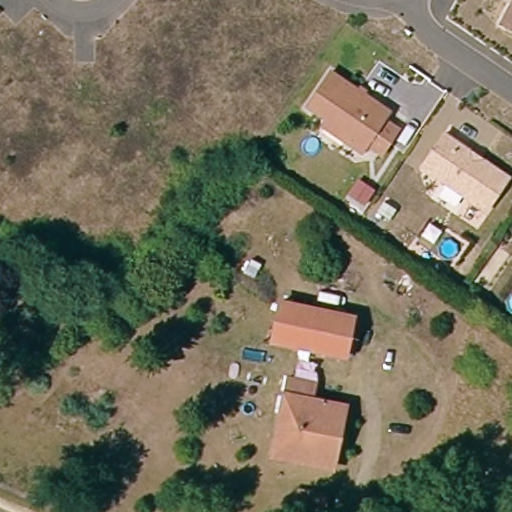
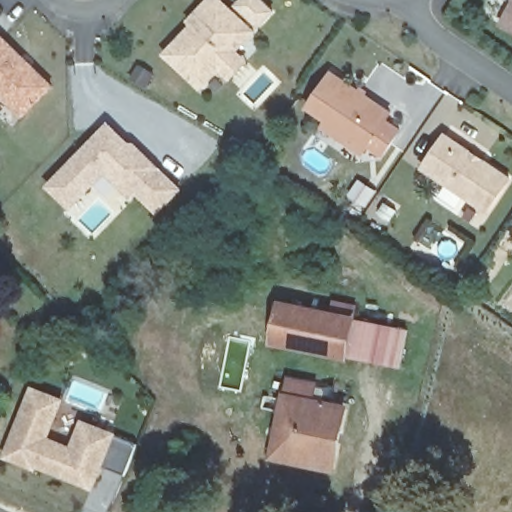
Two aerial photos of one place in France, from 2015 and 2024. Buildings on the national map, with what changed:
new [(254,0),(270,14),(256,29),(237,49),(249,58),(230,79),(219,69),(201,87),(161,51),(190,22),(185,18),(204,0),(226,0),(234,8),(242,0),(254,0)]
unchanged [(499,22),(510,0),(512,0),(512,29),(499,22)]
new [(22,114),(0,95),(0,29),(55,83),(22,114)]
unchanged [(381,152),(367,143),(362,150),(347,140),(322,124),(326,118),(306,105),(329,70),(388,110),(383,118),(398,127),(381,152)]
new [(132,141),(134,139),(182,187),(157,213),(134,191),(129,195),(105,172),(70,208),(45,184),(109,119),(132,141)]
unchanged [(486,208),(422,165),(443,131),(469,149),(480,156),(508,175),(486,208)]
unchanged [(369,211),(353,201),(362,189),(377,199),(369,211)]
unchanged [(400,217),(394,227),(382,219),(388,210),(400,217)]
new [(407,326),(400,365),(350,355),(348,361),(268,345),(278,298),(407,326)]
demolished [(355,313),(348,350),(281,338),(287,301),(355,313)]
new [(65,397),(50,435),(70,444),(82,417),(117,431),(116,435),(137,443),(125,472),(104,464),(92,489),(35,467),(34,469),(2,456),(30,384),(65,397)]
unchanged [(347,405),(336,469),(274,458),(286,394),(347,405)]
unchanged [(330,500),(328,512),(306,512),(297,510),(299,495),(330,500)]

